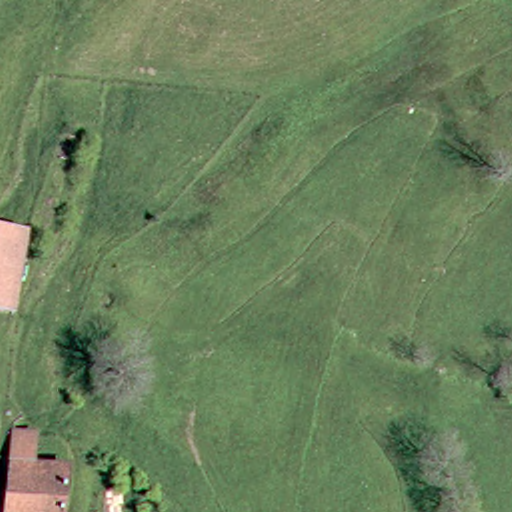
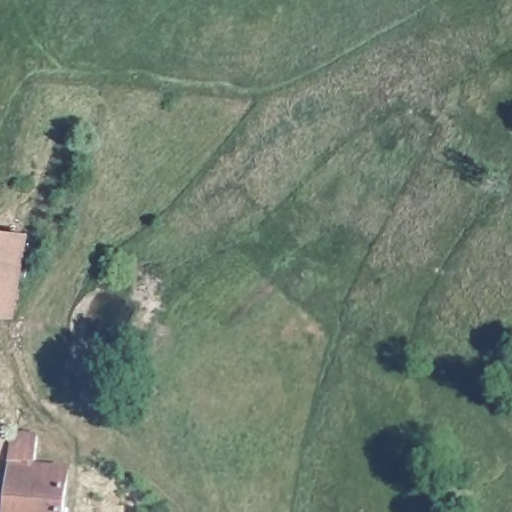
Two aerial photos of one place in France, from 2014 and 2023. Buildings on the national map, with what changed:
unchanged [(16,234),(2,313),(0,313),(0,232),(16,234)]
unchanged [(10,454),(17,425),(42,430),(35,459),(66,466),(57,512),(0,512),(0,499),(10,454)]

